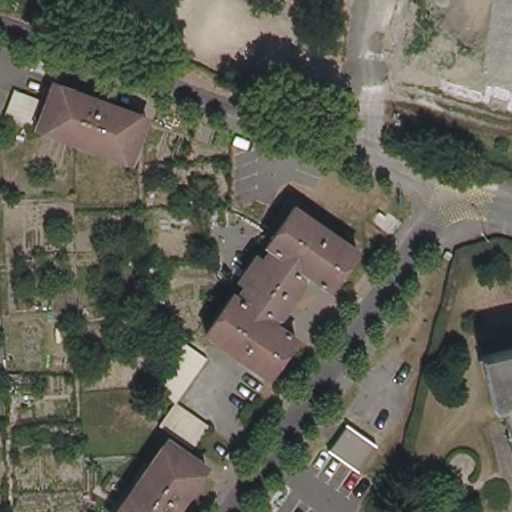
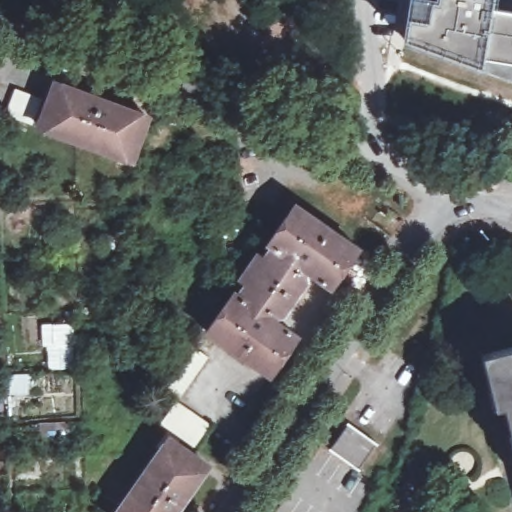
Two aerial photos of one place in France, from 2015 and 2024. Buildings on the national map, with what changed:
new [(512,15),(512,82),(479,68),(402,41),(407,0),(492,0),(489,12),(512,15)]
unchanged [(143,116),(126,161),(33,127),(50,82),(143,116)]
unchanged [(36,100),(26,125),(3,115),(11,90),(36,100)]
unchanged [(302,337),(275,374),(213,331),(241,292),(245,295),(253,283),(246,278),(264,254),(271,258),(278,248),(279,246),(275,243),(301,205),(363,249),(336,286),(309,267),(305,272),(309,275),(311,281),(287,314),(281,314),(278,311),(274,317),(302,337)]
unchanged [(151,389),(181,346),(204,362),(173,405),(151,389)]
unchanged [(507,422),(489,353),(512,347),(512,421),(507,422)]
unchanged [(208,429),(191,451),(158,428),(173,405),(208,429)]
unchanged [(377,442),(376,443),(376,442),(359,467),(359,468),(359,469),(329,448),(329,447),(330,448),(347,423),(346,422),(346,421),(377,442)]
unchanged [(205,471),(176,512),(116,512),(165,442),(205,471)]

